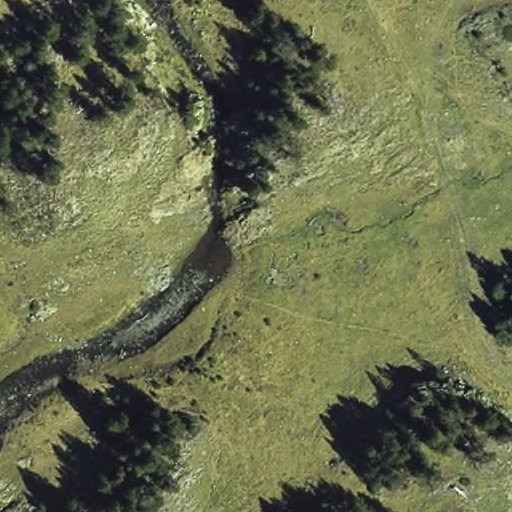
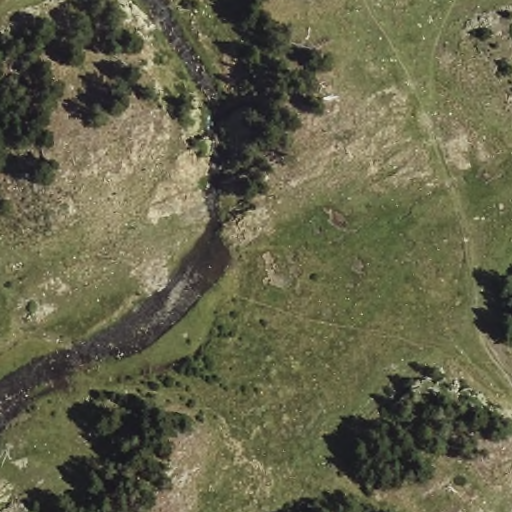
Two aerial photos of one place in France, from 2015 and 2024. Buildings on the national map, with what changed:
[]

